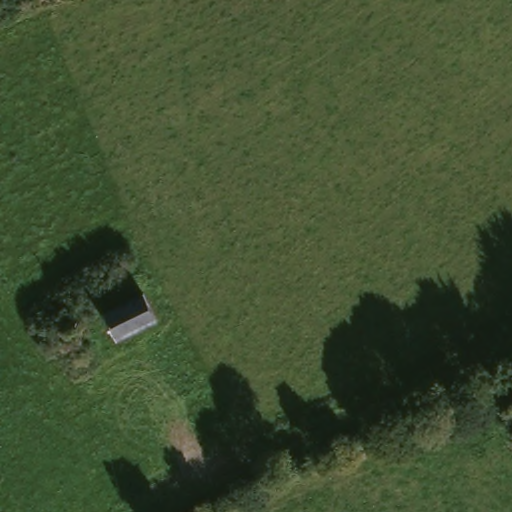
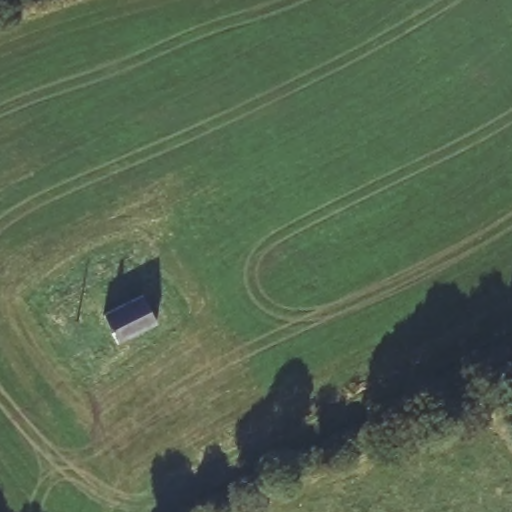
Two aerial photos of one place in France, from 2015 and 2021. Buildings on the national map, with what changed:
unchanged [(143,291),(157,318),(115,338),(103,311),(143,291)]

